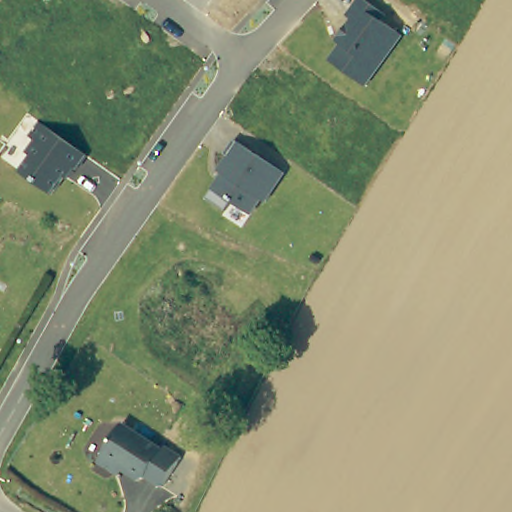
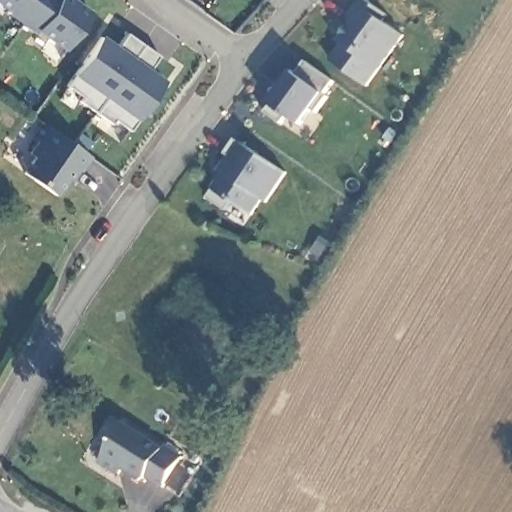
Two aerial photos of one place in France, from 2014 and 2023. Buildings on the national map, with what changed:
new [(32,30),(31,33),(7,14),(9,11),(0,5),(0,0),(76,0),(90,10),(62,51),(32,30)]
unchanged [(343,46),(338,43),(352,19),(348,16),(359,0),(365,0),(386,14),(381,21),(404,36),(368,88),(331,64),(343,46)]
new [(147,69),(162,79),(127,130),(111,120),(109,124),(76,100),(77,95),(66,86),(102,34),(115,44),(123,31),(159,55),(147,69)]
new [(323,95),(302,126),(272,104),(295,72),(297,74),(307,61),(334,80),(323,95)]
unchanged [(21,174),(33,158),(29,153),(36,142),(32,139),(42,123),(90,157),(75,178),(69,174),(54,195),(21,174)]
unchanged [(234,204),(228,212),(207,199),(222,173),(219,170),(238,143),(287,174),(270,202),(262,202),(254,217),(234,204)]
unchanged [(180,459),(162,486),(145,474),(137,477),(125,470),(124,462),(121,459),(112,468),(98,459),(122,419),(164,444),(162,447),(180,459)]

